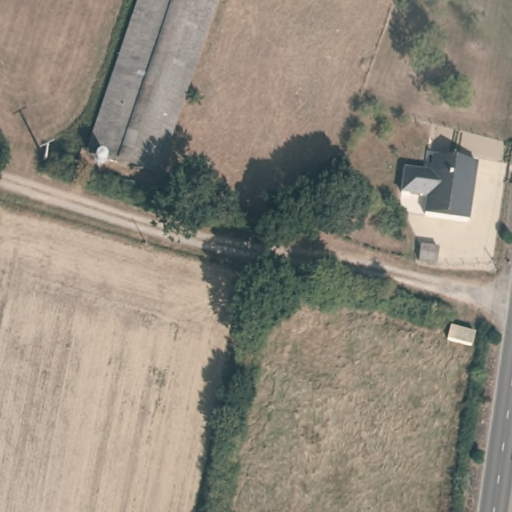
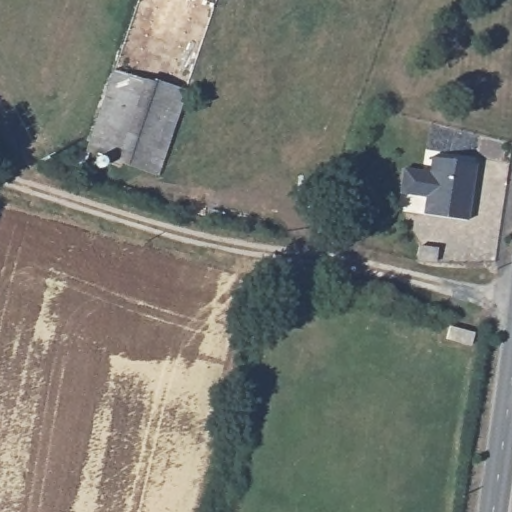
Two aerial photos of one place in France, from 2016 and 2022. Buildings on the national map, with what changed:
unchanged [(139,0),(217,0),(197,58),(157,175),(143,170),(87,152),(139,0)]
unchanged [(433,158),(460,161),(475,164),(467,220),(425,214),(429,184),(433,158)]
unchanged [(427,198),(400,194),(404,166),(431,170),(429,184),(427,198)]
unchanged [(420,247),(438,249),(436,262),(418,260),(420,247)]

